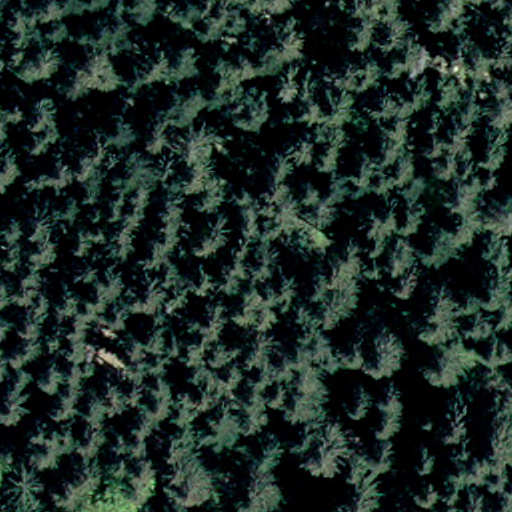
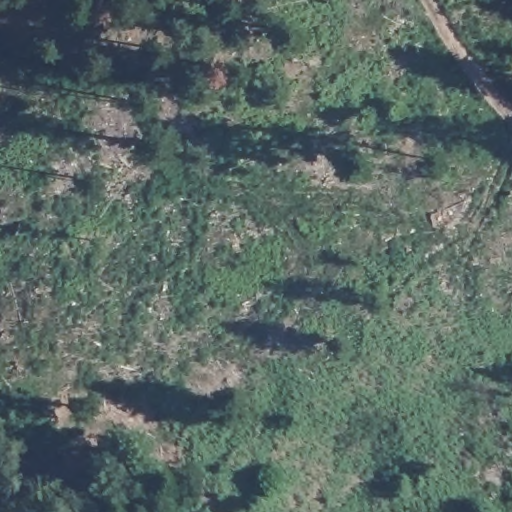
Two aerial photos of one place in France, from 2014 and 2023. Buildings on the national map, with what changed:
[]

